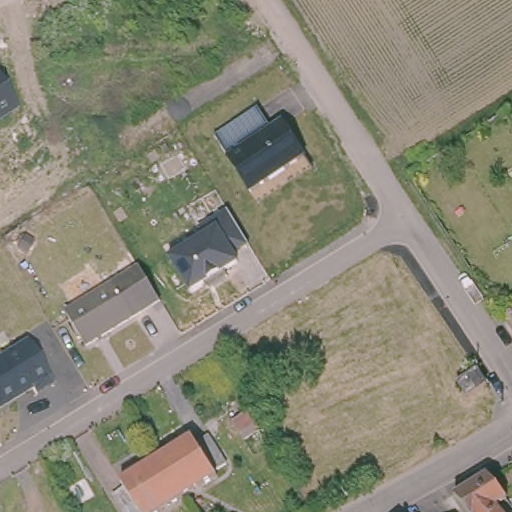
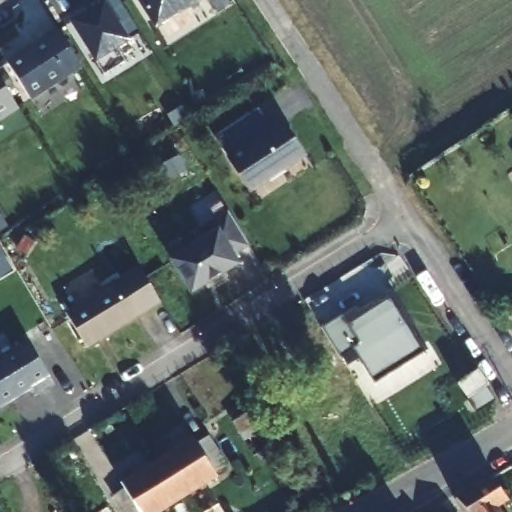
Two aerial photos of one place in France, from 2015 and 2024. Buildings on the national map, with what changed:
new [(103,4),(101,0),(120,0),(140,34),(115,49),(124,63),(104,75),(72,23),(103,4)]
new [(200,0),(155,28),(139,0),(200,0)]
new [(43,39),(42,36),(57,27),(81,66),(30,99),(7,62),(43,39)]
unchanged [(0,120),(0,80),(18,109),(0,120)]
unchanged [(271,128),(283,120),(306,157),(250,193),(227,156),(215,138),(258,108),(271,128)]
unchanged [(172,259),(217,231),(213,223),(229,213),(248,245),(233,254),(238,263),(190,292),(172,259)]
unchanged [(139,267),(161,304),(135,319),(115,283),(139,267)]
unchanged [(67,311),(115,283),(135,319),(88,347),(67,311)]
new [(402,316),(423,351),(375,381),(355,349),(340,358),(322,328),(355,307),(358,311),(393,289),(402,316)]
unchanged [(0,358),(29,341),(54,382),(37,394),(32,387),(0,406),(0,358)]
unchanged [(467,398),(458,383),(478,370),(487,384),(467,398)]
unchanged [(262,426),(265,433),(249,443),(245,436),(237,424),(253,413),(262,426)]
unchanged [(127,485),(125,482),(161,461),(198,438),(202,444),(213,436),(222,450),(232,465),(220,473),(222,477),(185,500),(165,512),(128,512),(127,509),(116,492),(127,485)]
unchanged [(487,484),(507,509),(503,512),(461,512),(456,506),(487,484)]

